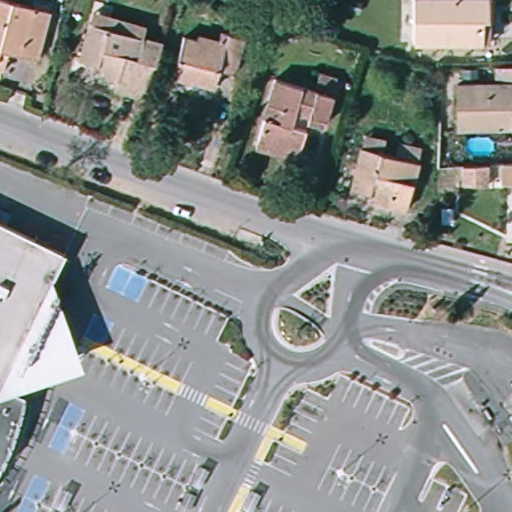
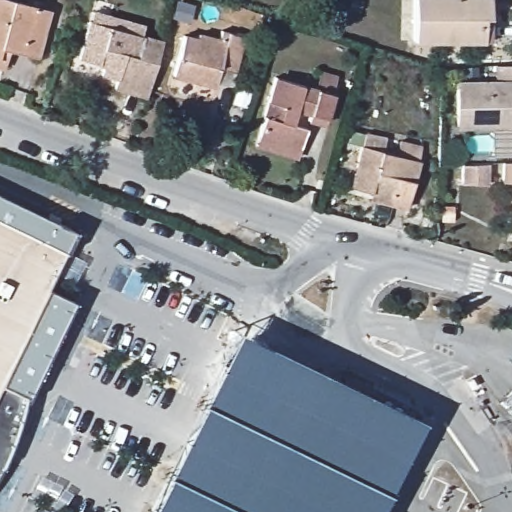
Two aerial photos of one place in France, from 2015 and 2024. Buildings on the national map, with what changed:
unchanged [(0,48),(0,0),(2,0),(42,9),(31,55),(0,48)]
unchanged [(420,44),(419,0),(437,0),(492,2),(492,23),(484,24),(484,46),(420,44)]
unchanged [(159,61),(151,99),(124,92),(128,78),(107,71),(109,63),(85,55),(94,18),(148,33),(142,57),(159,61)]
unchanged [(173,80),(185,43),(199,47),(202,39),(222,44),(224,37),(245,43),(237,72),(212,65),(205,89),(173,80)]
unchanged [(310,122),(299,156),(258,143),(277,79),(333,95),(324,126),(310,122)]
unchanged [(510,130),(456,128),(457,87),(512,89),(512,139),(510,139),(510,130)]
unchanged [(386,193),(388,185),(362,176),(374,139),(427,155),(413,201),(386,193)]
unchanged [(455,165),(482,165),(480,186),(454,183),(455,165)]
unchanged [(502,165),(512,165),(512,181),(502,181),(502,165)]
unchanged [(63,251),(51,277),(82,365),(15,389),(23,394),(16,425),(3,460),(0,464),(0,221),(63,251)]
new [(374,512),(145,512),(234,328),(419,421),(374,512)]
unchanged [(512,412),(512,416),(510,414),(512,412)]

